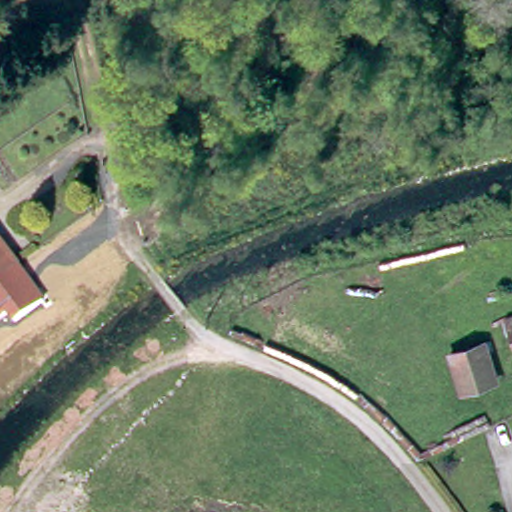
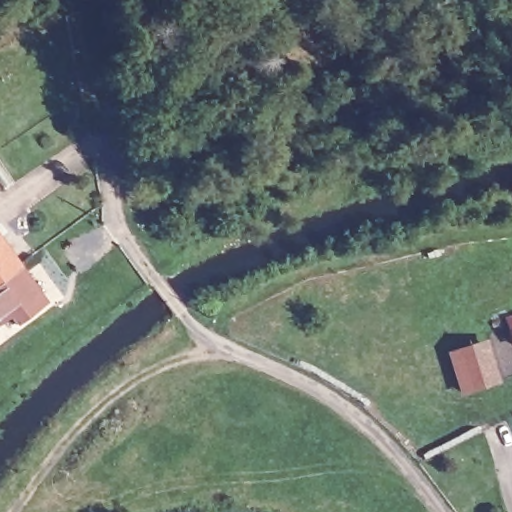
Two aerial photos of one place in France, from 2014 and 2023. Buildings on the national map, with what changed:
unchanged [(0,277),(0,245),(15,266),(0,277)]
unchanged [(15,266),(40,302),(13,322),(6,313),(0,317),(0,277),(15,266)]
unchanged [(512,303),(512,306),(511,303),(512,303)]
unchanged [(466,381),(455,345),(488,335),(499,372),(466,381)]

